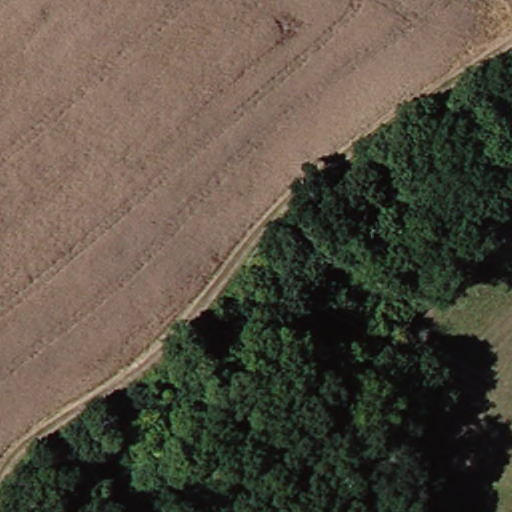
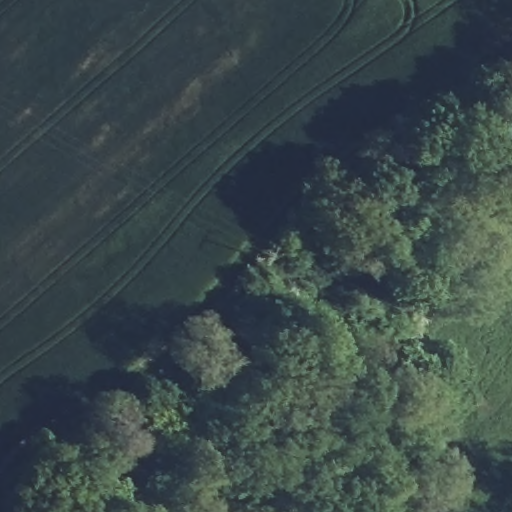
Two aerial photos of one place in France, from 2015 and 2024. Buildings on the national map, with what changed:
[]

